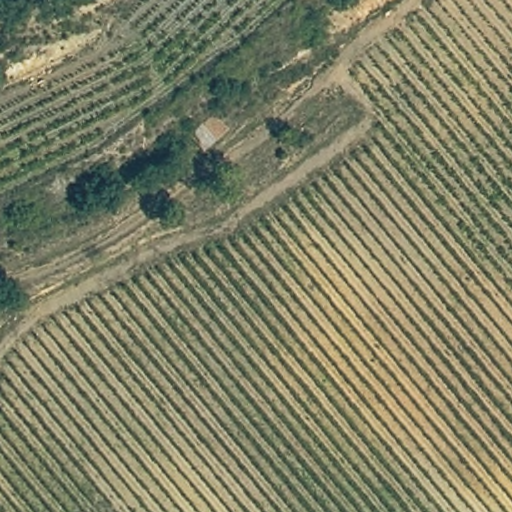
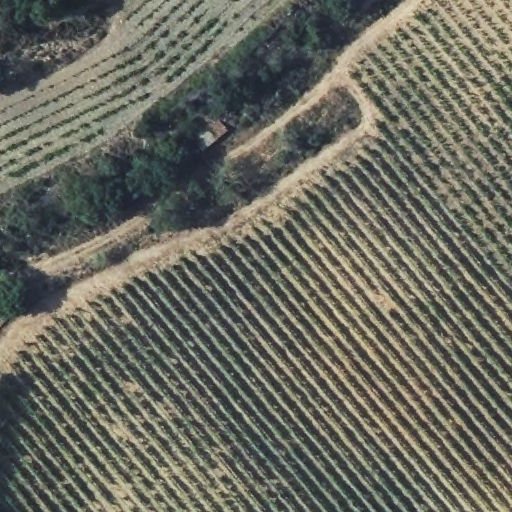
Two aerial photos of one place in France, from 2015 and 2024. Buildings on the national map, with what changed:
unchanged [(187,140),(212,118),(225,135),(200,153),(187,140)]

